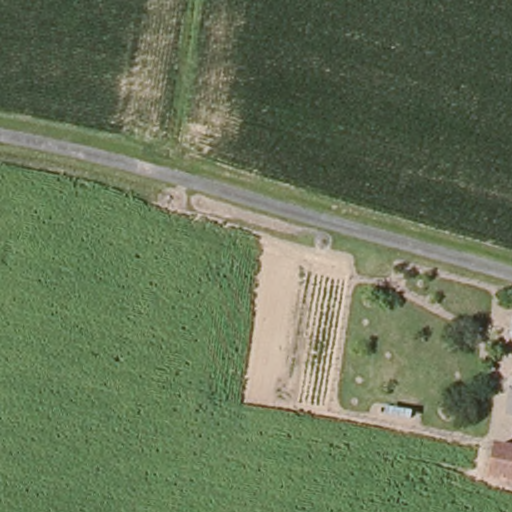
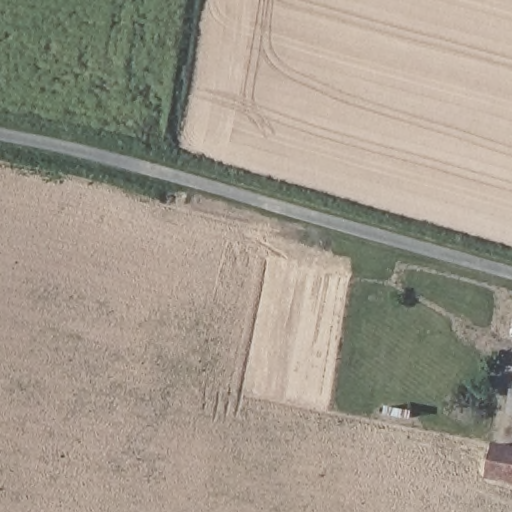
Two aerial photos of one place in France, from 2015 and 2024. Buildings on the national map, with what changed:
unchanged [(512,450),(512,486),(493,483),(499,448),(512,450)]

